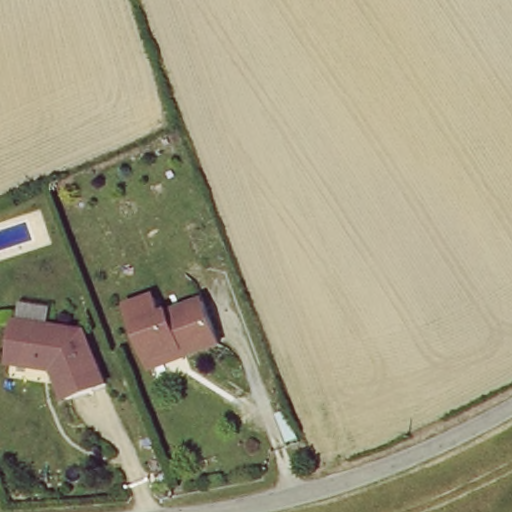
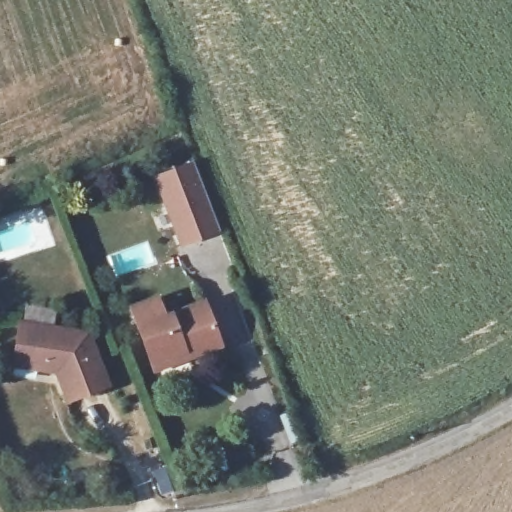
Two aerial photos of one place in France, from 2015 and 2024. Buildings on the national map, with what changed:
new [(192,160),(221,231),(181,247),(153,177),(192,160)]
unchanged [(152,364),(135,308),(161,300),(167,318),(208,305),(222,350),(188,360),(154,370),(152,364)]
unchanged [(18,356),(26,322),(93,338),(110,392),(68,405),(60,373),(16,365),(18,356)]

